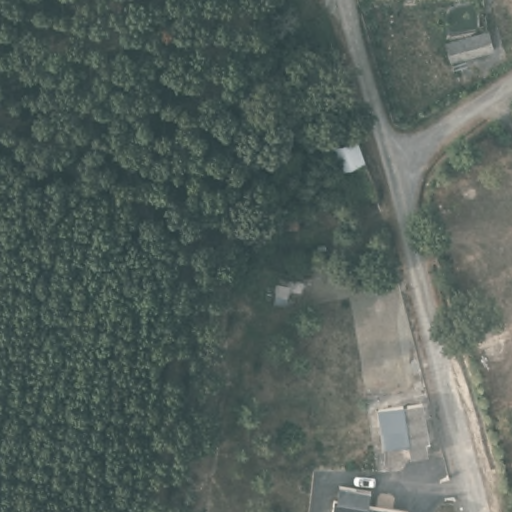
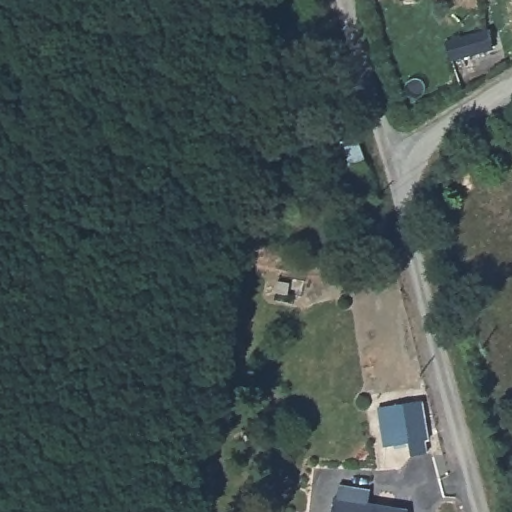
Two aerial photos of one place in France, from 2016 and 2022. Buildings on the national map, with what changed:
unchanged [(448,42),(489,31),(495,49),(454,62),(448,42)]
unchanged [(340,169),(325,129),(353,119),(365,160),(340,169)]
unchanged [(411,450),(410,440),(386,442),(381,403),(423,398),(429,437),(426,437),(428,450),(411,450)]
unchanged [(329,512),(332,496),(339,495),(341,480),(358,484),(372,485),(371,500),(404,506),(403,512),(329,512)]

